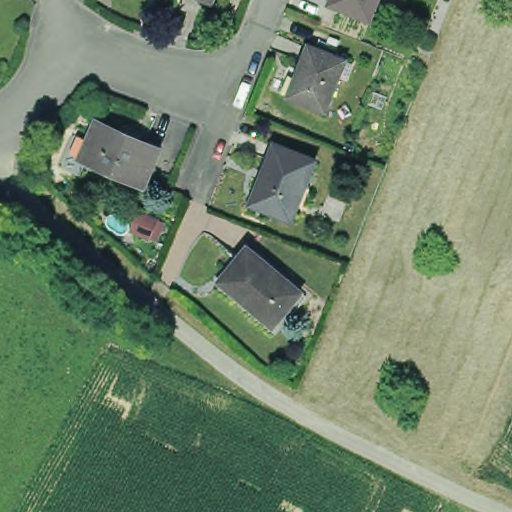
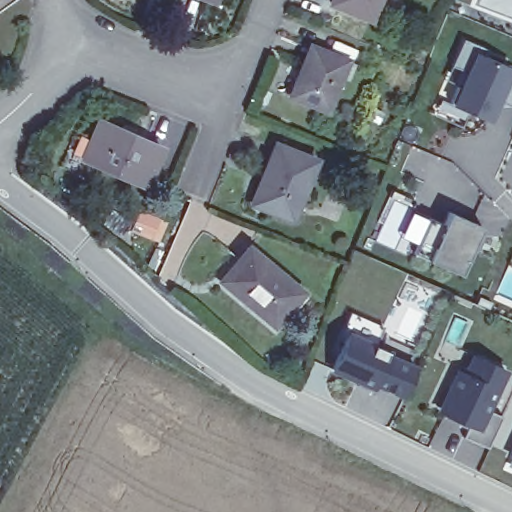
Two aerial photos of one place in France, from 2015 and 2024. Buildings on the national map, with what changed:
unchanged [(330,1),(330,0),(377,0),(369,18),(330,1)]
unchanged [(289,95),(309,45),(343,58),(322,109),(289,95)]
new [(502,102),(494,121),(457,105),(477,53),(512,67),(512,106),(502,102)]
unchanged [(164,147),(146,185),(85,158),(104,120),(164,147)]
unchanged [(315,157),(292,216),(252,201),(275,142),(315,157)]
new [(139,208),(168,221),(159,243),(130,230),(139,208)]
new [(460,275),(427,261),(414,253),(429,218),(443,224),(449,212),(482,227),(460,275)]
unchanged [(305,290),(276,323),(270,318),(221,275),(250,242),(300,285),(305,290)]
new [(403,398),(375,386),(373,390),(329,371),(347,330),(392,349),(390,353),(417,364),(403,398)]
new [(488,447),(462,436),(467,425),(433,411),(452,366),(460,369),(467,351),(507,368),(489,408),(502,414),(488,447)]
new [(505,453),(512,436),(512,456),(505,453)]

